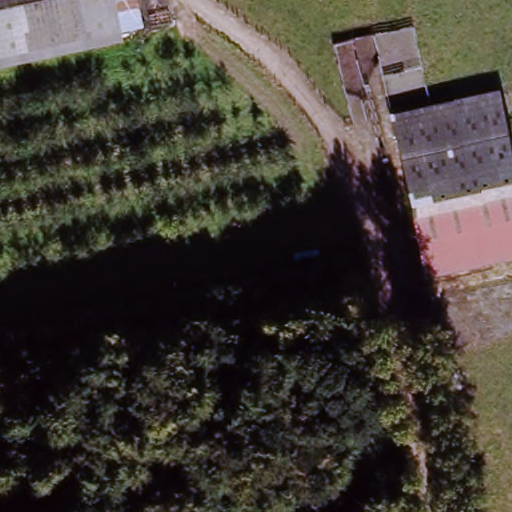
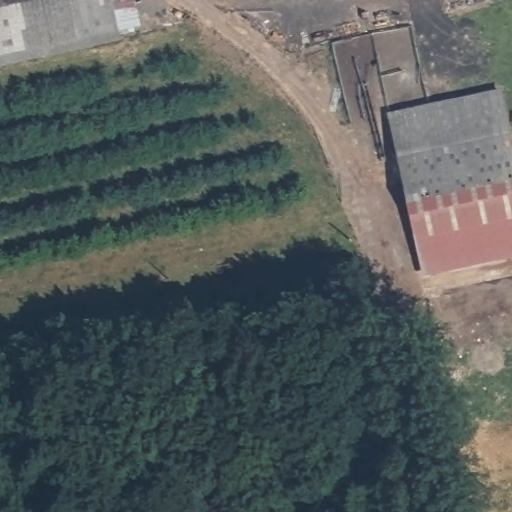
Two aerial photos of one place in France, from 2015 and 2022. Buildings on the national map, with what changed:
unchanged [(135,38),(0,69),(0,0),(127,0),(135,38)]
unchanged [(417,227),(395,119),(506,98),(512,130),(512,209),(417,227)]
unchanged [(427,275),(417,227),(512,209),(512,259),(427,275)]

